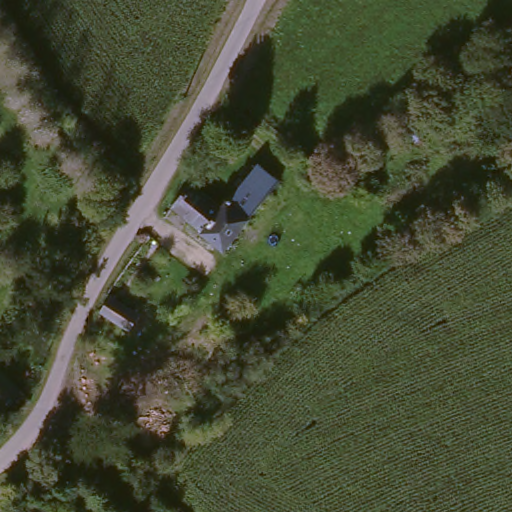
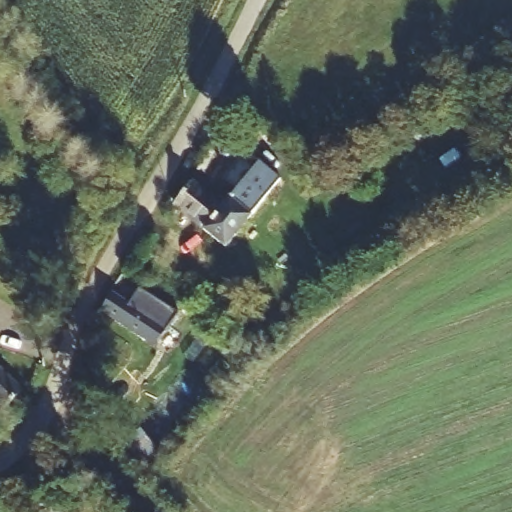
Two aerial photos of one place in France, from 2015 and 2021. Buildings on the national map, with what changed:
unchanged [(256,174),(277,190),(259,210),(245,229),(244,230),(226,257),(172,214),(192,190),(209,203),(222,213),(230,208),(256,174)]
new [(156,347),(101,310),(113,293),(129,304),(139,291),(178,315),(156,347)]
demolished [(118,303),(148,323),(138,339),(106,319),(118,303)]
unchanged [(6,411),(0,406),(0,372),(23,394),(6,411)]
unchanged [(59,512),(43,512),(55,506),(59,512)]

